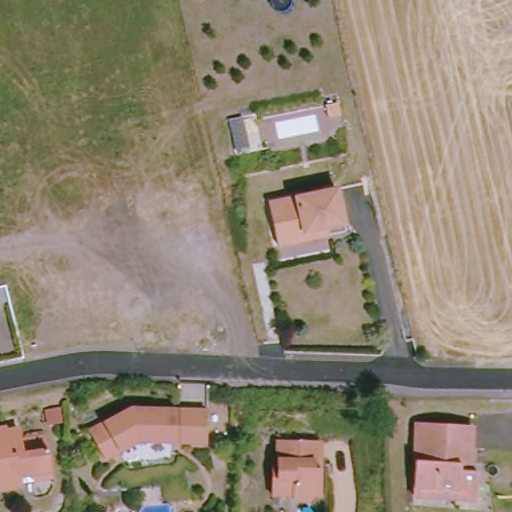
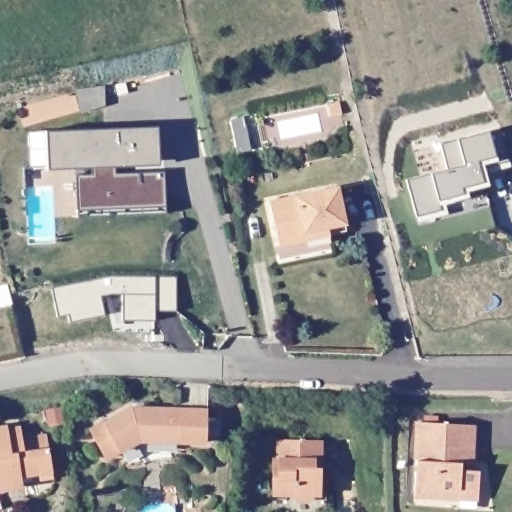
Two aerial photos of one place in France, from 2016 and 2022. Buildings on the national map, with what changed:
new [(78,209),(78,177),(93,176),(93,168),(49,170),(47,133),(158,127),(160,165),(114,167),(115,175),(165,174),(173,192),(166,206),(78,209)]
new [(504,184),(487,173),(489,187),(469,193),(470,198),(446,205),(448,215),(418,224),(409,180),(433,175),(449,170),(442,145),(459,140),(489,132),(500,129),(511,167),(504,184)]
unchanged [(279,245),(269,203),(336,188),(345,230),(279,245)]
unchanged [(8,285),(13,305),(0,308),(0,287),(8,285)]
unchanged [(135,431),(101,448),(86,421),(127,400),(203,400),(202,431),(135,431)]
unchanged [(454,496),(409,495),(414,422),(468,425),(466,463),(463,463),(463,470),(473,470),(473,490),(473,497),(454,496)]
unchanged [(4,428),(5,433),(18,432),(18,439),(43,436),(49,477),(31,481),(24,477),(18,478),(19,487),(0,490),(0,429),(4,428)]
unchanged [(309,495),(306,500),(293,500),(289,495),(268,494),(269,459),(274,458),(274,440),(317,440),(317,460),(316,467),(316,494),(309,495)]

